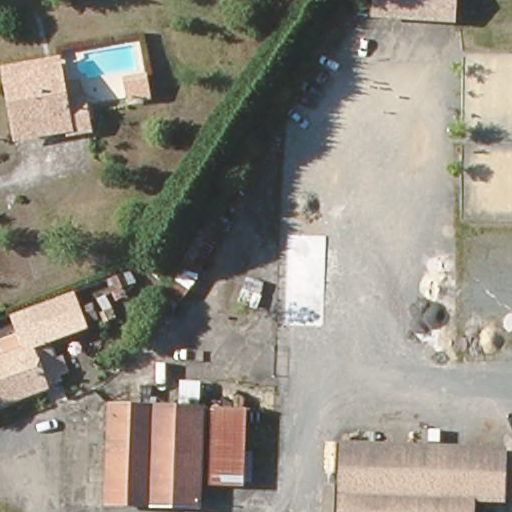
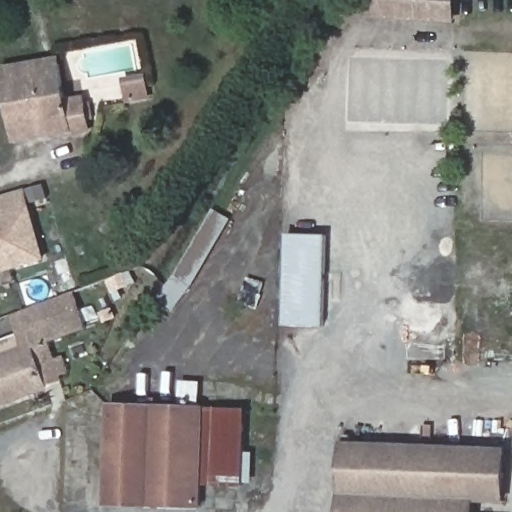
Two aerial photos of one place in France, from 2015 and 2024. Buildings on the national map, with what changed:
unchanged [(451,22),(369,12),(371,0),(455,0),(451,22)]
unchanged [(18,138),(5,72),(56,63),(64,103),(82,100),(88,131),(70,134),(68,130),(18,138)]
new [(0,212),(0,197),(24,190),(46,259),(0,272),(0,216),(1,215),(0,212)]
unchanged [(159,300),(212,211),(229,221),(173,310),(159,300)]
new [(284,325),(286,233),(326,235),(323,327),(284,325)]
unchanged [(0,349),(0,341),(16,335),(10,316),(71,293),(74,304),(82,322),(45,339),(55,361),(50,363),(54,373),(43,380),(45,386),(2,402),(0,398),(0,362),(4,360),(0,349)]
demolished [(410,358),(396,351),(403,340),(415,349),(410,358)]
unchanged [(241,486),(198,486),(197,508),(103,506),(105,410),(190,412),(190,389),(203,390),(204,410),(210,410),(210,414),(241,413),(241,486)]
unchanged [(502,449),(502,501),(472,500),(472,512),(337,512),(339,446),(502,449)]

